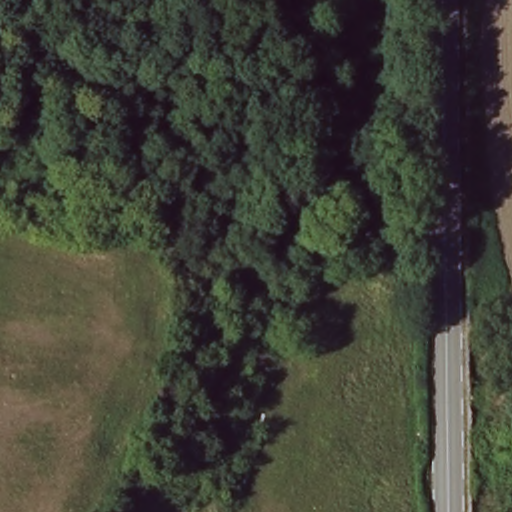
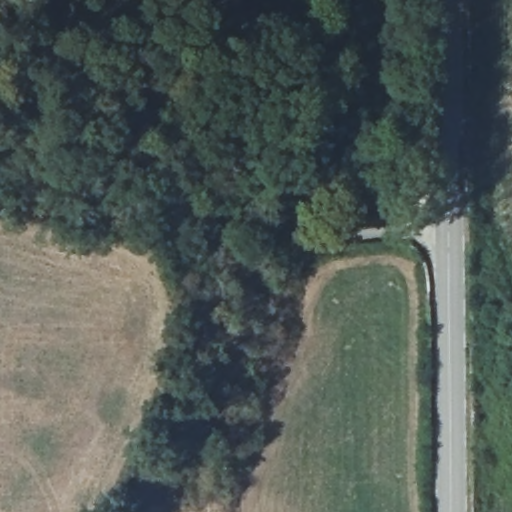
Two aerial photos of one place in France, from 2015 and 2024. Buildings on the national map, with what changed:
[]

